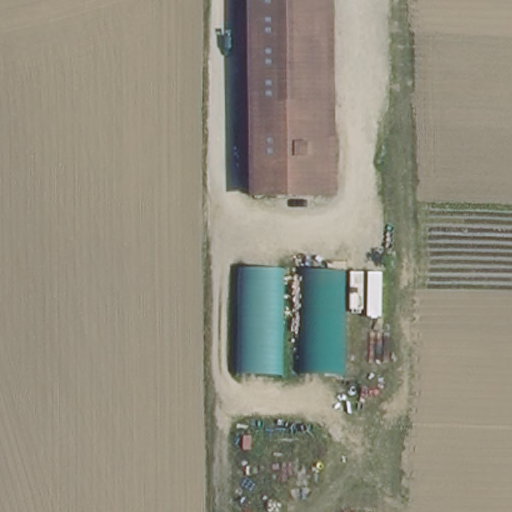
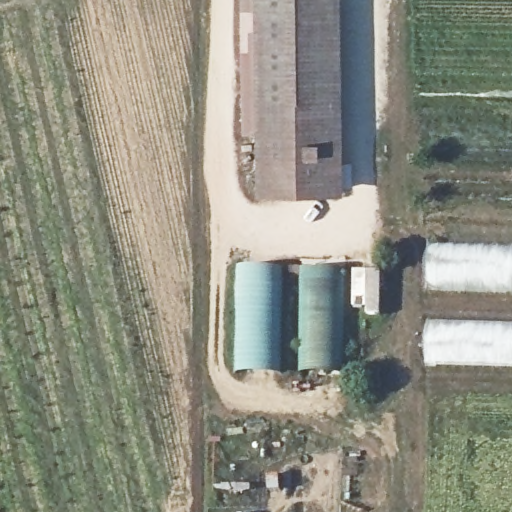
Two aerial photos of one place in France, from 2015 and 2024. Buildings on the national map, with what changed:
unchanged [(262,157),(261,75),(250,75),(249,0),(327,0),(330,155),(262,157)]
unchanged [(330,155),(330,184),(262,185),(262,157),(330,155)]
new [(426,290),(427,243),(512,245),(512,292),(426,290)]
unchanged [(282,264),(281,367),(242,365),(243,263),(282,264)]
new [(343,268),(344,372),(300,372),(301,268),(343,268)]
new [(423,364),(425,319),(512,321),(512,365),(423,364)]

